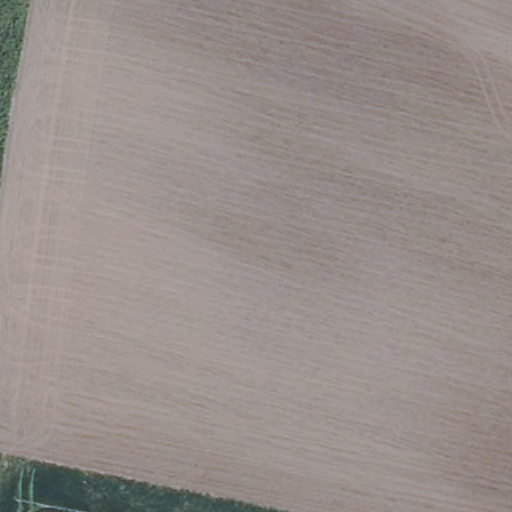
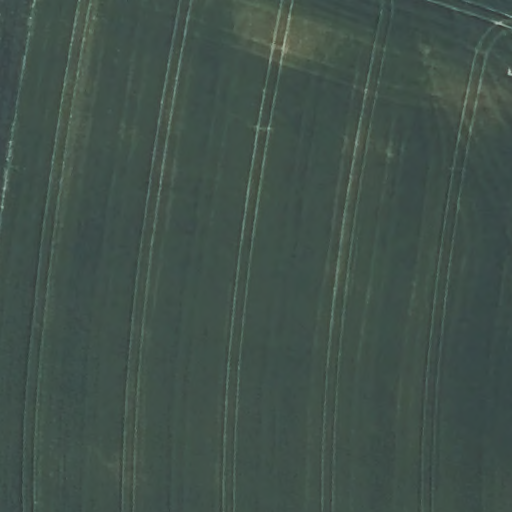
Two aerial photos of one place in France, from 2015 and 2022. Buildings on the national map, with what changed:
[]

